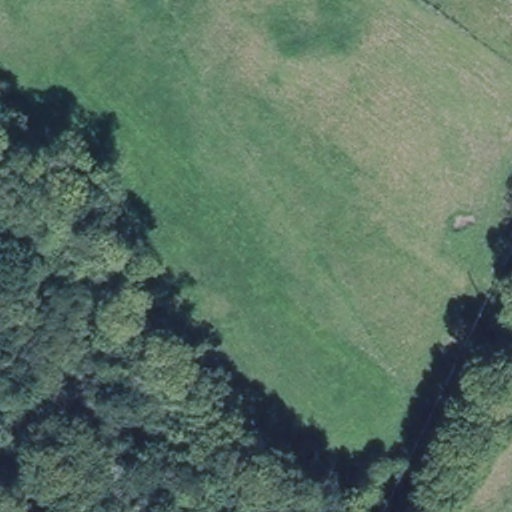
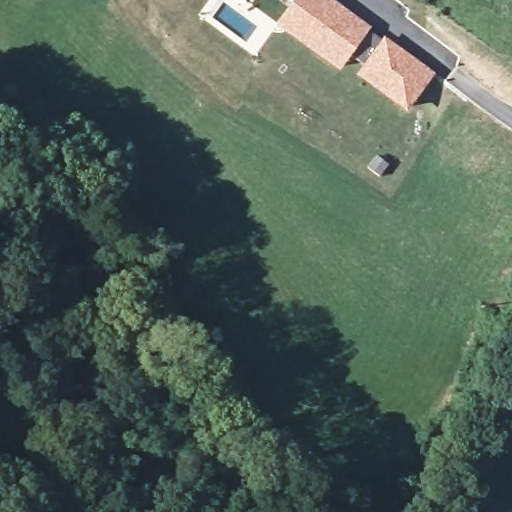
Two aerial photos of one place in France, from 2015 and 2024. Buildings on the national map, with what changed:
new [(293,0),(330,0),(348,14),(349,10),(429,69),(406,101),(360,68),(366,60),(349,47),(339,61),(280,18),(293,0)]

